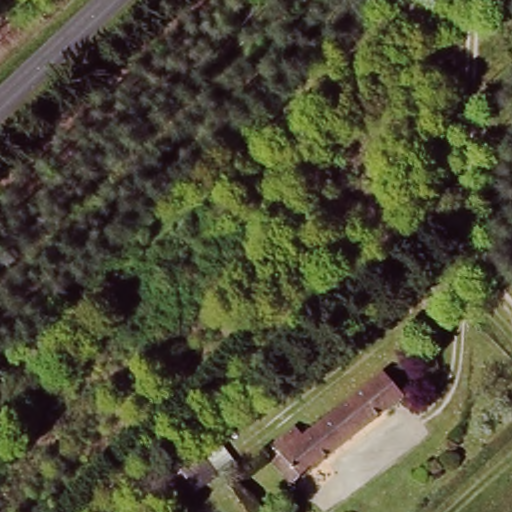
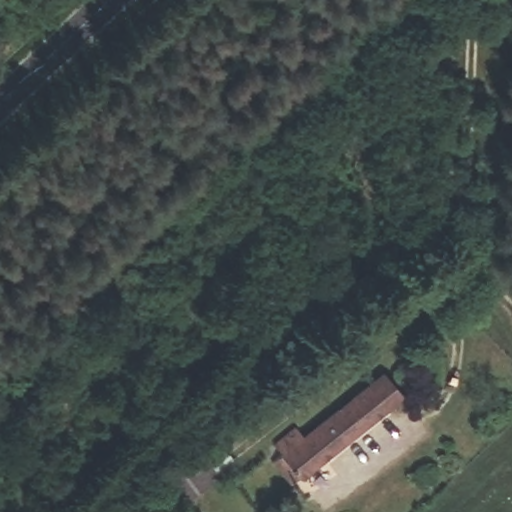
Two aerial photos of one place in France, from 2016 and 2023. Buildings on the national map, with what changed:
unchanged [(385,372),(403,395),(376,417),(357,396),(385,372)]
unchanged [(357,396),(376,417),(285,493),(268,475),(285,460),(275,448),(302,423),(313,435),(357,396)]
unchanged [(189,477),(151,512),(138,512),(125,496),(170,456),(189,477)]

